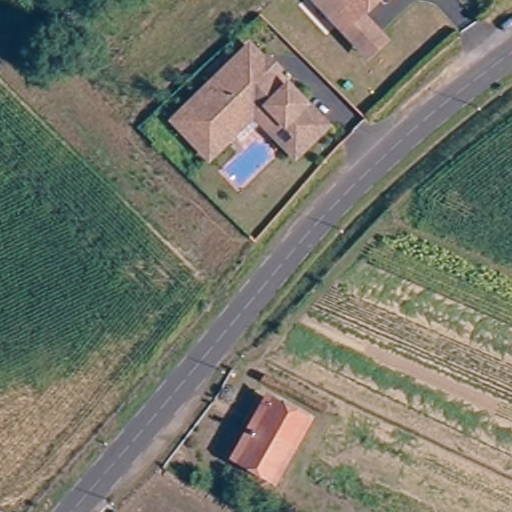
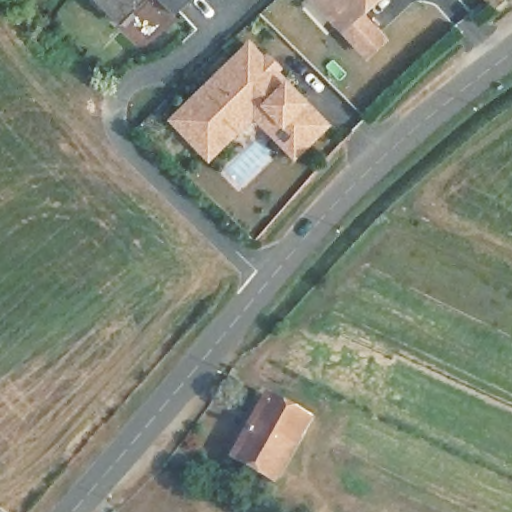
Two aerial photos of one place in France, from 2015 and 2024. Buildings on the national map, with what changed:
new [(123,29),(94,1),(95,0),(151,0),(123,29)]
new [(190,6),(177,20),(157,0),(196,0),(190,6)]
unchanged [(364,54),(356,45),(315,0),(369,0),(356,12),(374,29),(382,38),(364,54)]
unchanged [(251,119),(235,133),(229,127),(205,150),(182,124),(171,112),(249,42),(258,52),(264,59),(267,56),(275,64),(272,67),(322,122),(291,151),(275,134),(263,120),(251,119)]
unchanged [(230,452),(262,397),(301,420),(268,475),(230,452)]

